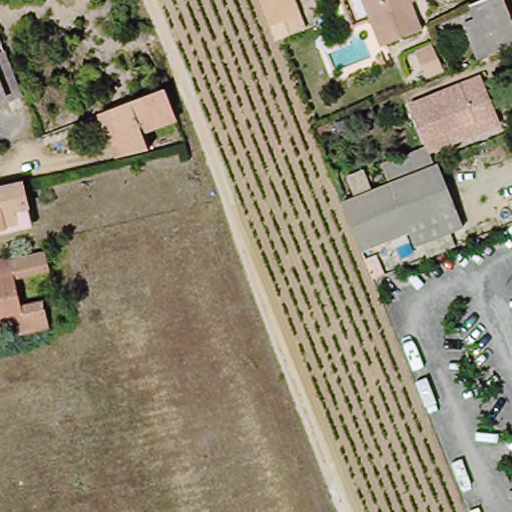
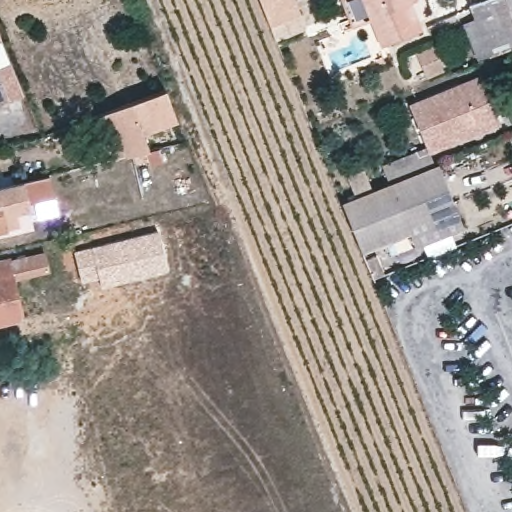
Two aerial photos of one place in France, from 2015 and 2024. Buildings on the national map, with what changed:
unchanged [(307,29),(275,41),(259,0),(296,0),(307,29)]
unchanged [(425,30),(384,46),(366,0),(413,0),(425,30)]
unchanged [(493,0),(503,0),(512,23),(512,48),(490,57),(472,9),(493,0)]
unchanged [(0,106),(0,63),(15,100),(0,106)]
unchanged [(412,111),(462,92),(472,87),(482,112),(472,116),(476,126),(480,137),(452,147),(430,156),(412,111)]
unchanged [(166,95),(179,127),(144,140),(149,155),(117,162),(101,120),(166,95)]
unchanged [(407,96),(412,111),(365,129),(360,114),(407,96)]
unchanged [(360,256),(341,207),(390,187),(384,175),(430,156),(437,169),(462,232),(414,252),(408,238),(370,252),(380,278),(371,282),(360,256)]
unchanged [(30,222),(26,224),(0,229),(0,183),(13,181),(20,180),(30,222)]
new [(157,229),(169,270),(100,287),(98,278),(81,282),(71,251),(157,229)]
unchanged [(48,326),(21,332),(18,320),(0,323),(0,262),(8,260),(9,262),(42,253),(45,270),(43,270),(12,277),(20,306),(41,302),(48,326)]

